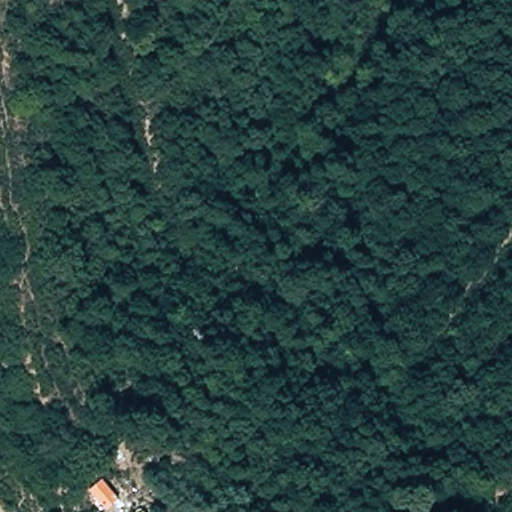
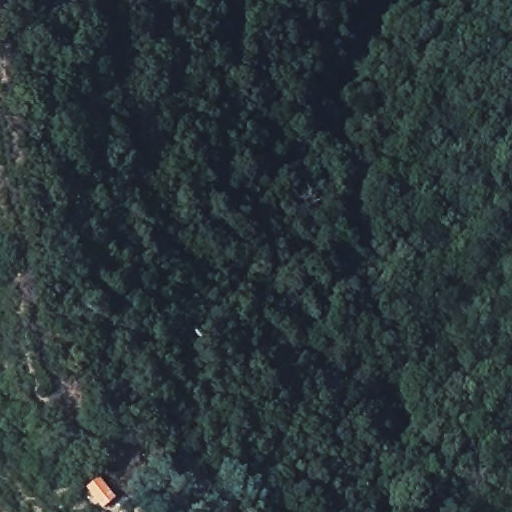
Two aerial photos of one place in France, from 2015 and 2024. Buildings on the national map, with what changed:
unchanged [(114,501),(98,511),(83,490),(98,479),(114,501)]

